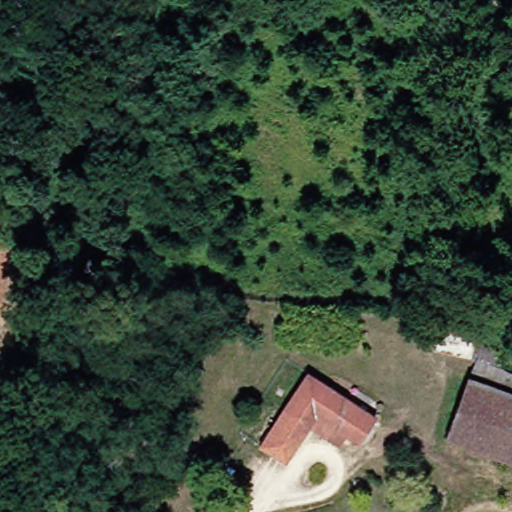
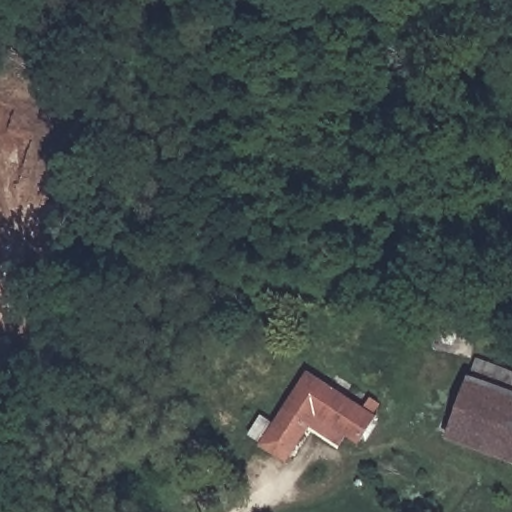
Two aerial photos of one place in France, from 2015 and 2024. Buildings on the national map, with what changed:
unchanged [(315,425),(292,461),(267,444),(313,372),(381,416),(364,444),(349,434),(344,444),(315,425)]
unchanged [(452,437),(474,377),(512,390),(512,459),(452,437)]

